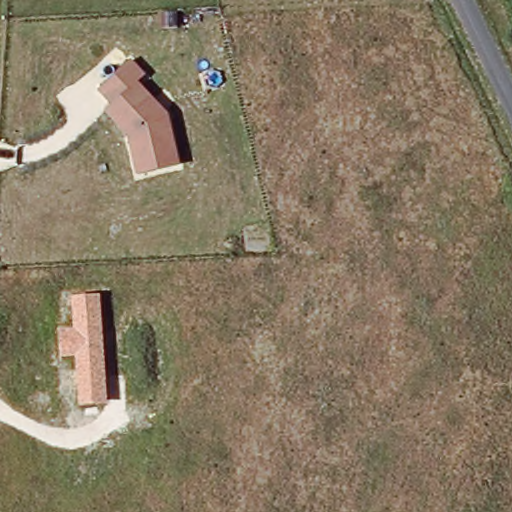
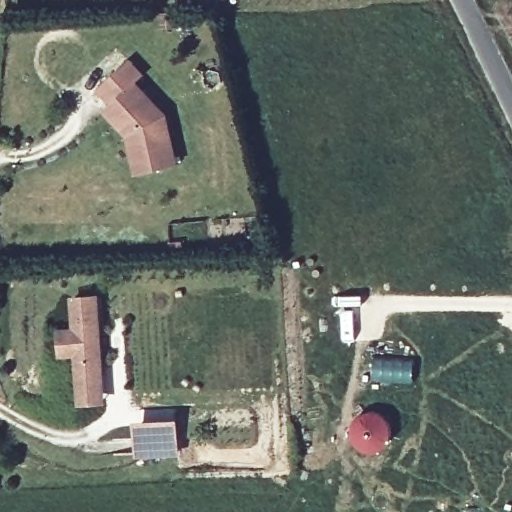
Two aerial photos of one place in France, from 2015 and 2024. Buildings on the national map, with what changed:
unchanged [(145,75),(139,82),(166,112),(179,164),(135,173),(126,135),(103,110),(110,103),(96,90),(130,58),(145,75)]
unchanged [(107,403),(78,405),(75,355),(62,357),(60,329),(74,327),(72,297),(100,294),(107,403)]
new [(135,422),(179,419),(180,454),(137,457),(135,422)]

